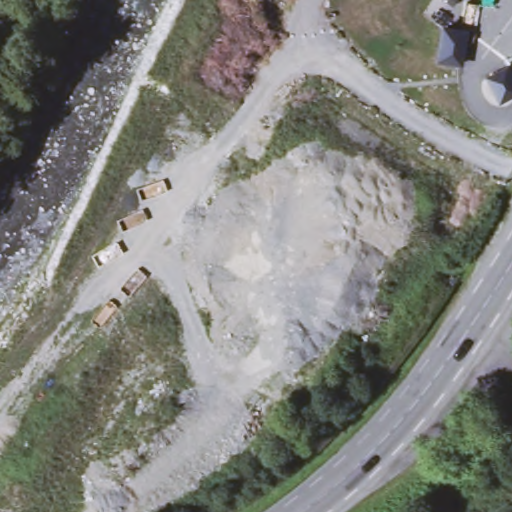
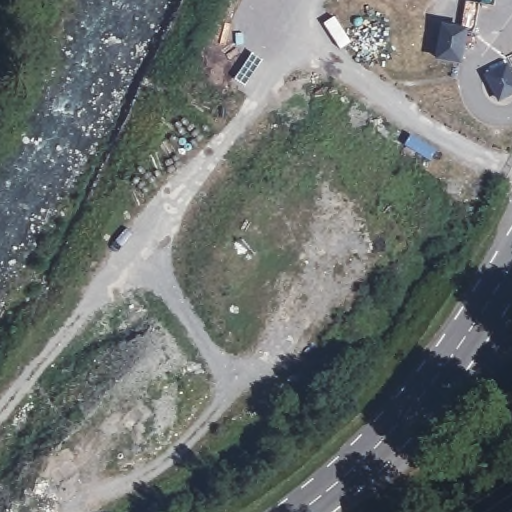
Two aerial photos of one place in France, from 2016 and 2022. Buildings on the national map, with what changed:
unchanged [(442,25),(467,29),(463,63),(437,59),(442,25)]
unchanged [(485,76),(509,66),(512,73),(512,97),(497,104),(485,76)]

